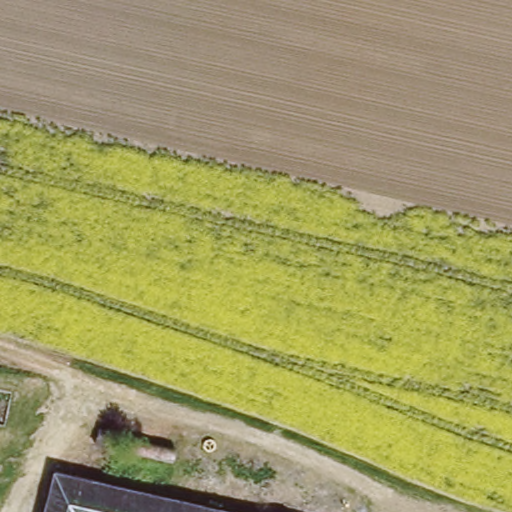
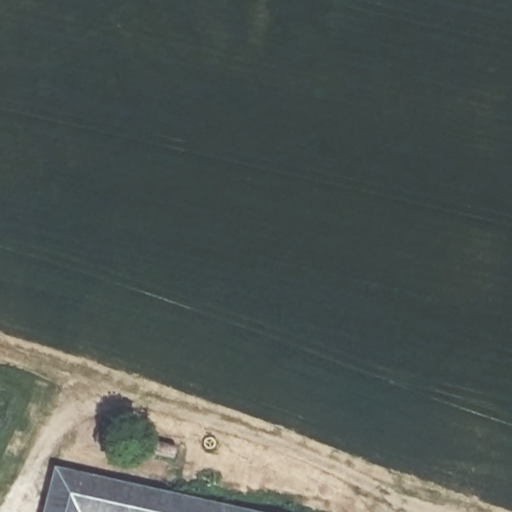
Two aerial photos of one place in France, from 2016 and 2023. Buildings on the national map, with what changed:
unchanged [(48,465),(248,512),(37,512),(48,465)]

